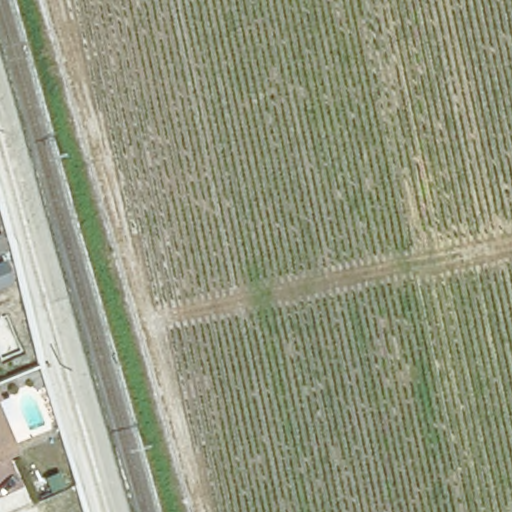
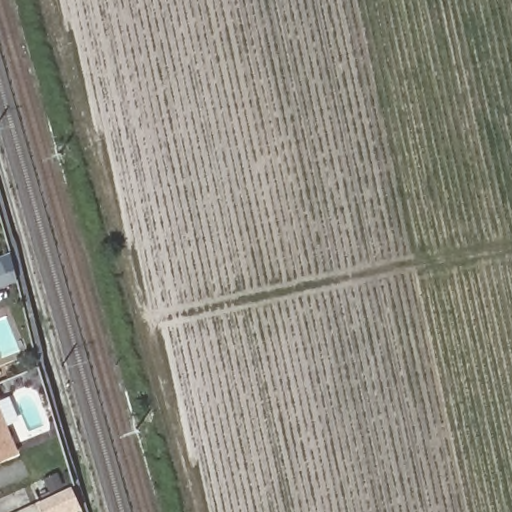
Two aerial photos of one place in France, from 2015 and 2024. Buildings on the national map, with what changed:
unchanged [(0,463),(0,418),(17,455),(0,463)]
demolished [(73,512),(50,512),(44,498),(72,485),(82,507),(73,512)]

